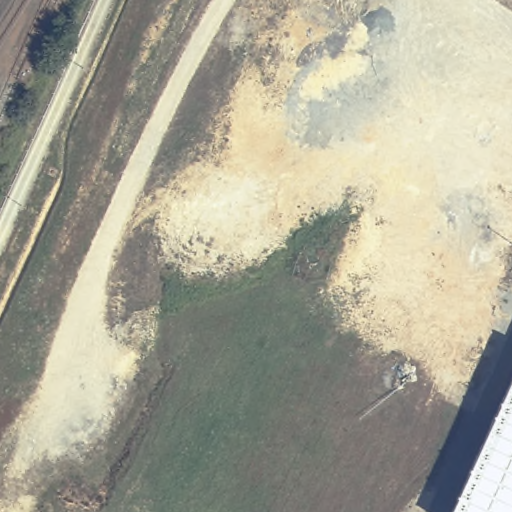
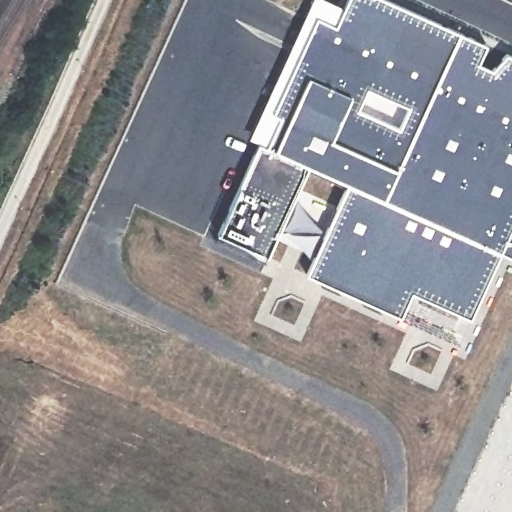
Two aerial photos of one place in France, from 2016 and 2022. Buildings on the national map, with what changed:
new [(244,137),(308,0),(328,0),(341,5),(343,0),(391,0),(487,43),(480,61),(492,66),(506,51),(512,55),(512,257),(497,251),(455,342),(303,273),(344,182),(304,164),(261,261),(210,239),(255,142),(244,137)]
unchanged [(512,512),(452,512),(512,380),(512,512)]

